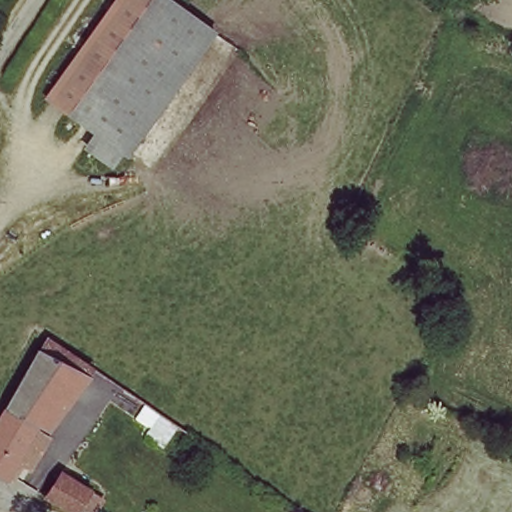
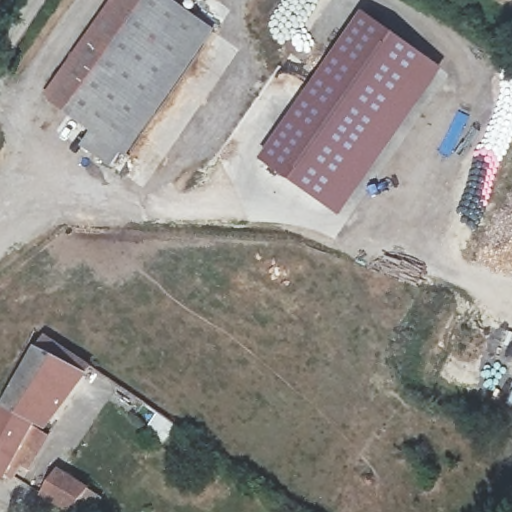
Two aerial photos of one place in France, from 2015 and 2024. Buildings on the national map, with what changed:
unchanged [(108,54),(142,0),(171,0),(213,27),(151,125),(132,156),(125,151),(116,165),(92,151),(101,136),(68,115),(85,89),(108,54)]
new [(361,23),(439,79),(336,225),(259,169),(361,23)]
unchanged [(0,480),(0,413),(46,339),(75,359),(78,361),(32,432),(1,480),(0,480)]
unchanged [(78,361),(92,371),(48,441),(32,432),(78,361)]
unchanged [(70,512),(66,510),(66,512),(62,512),(38,496),(53,473),(78,489),(91,497),(84,512),(70,512)]

